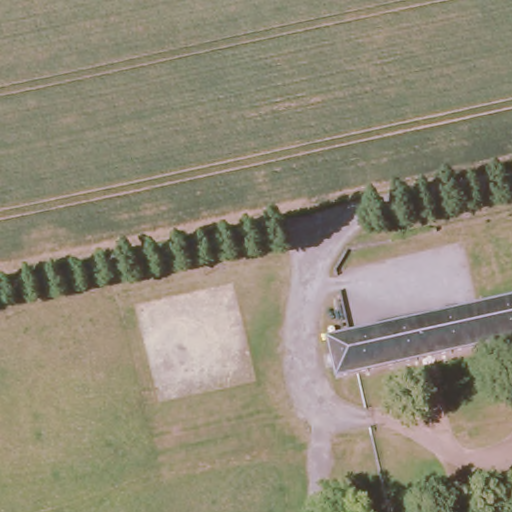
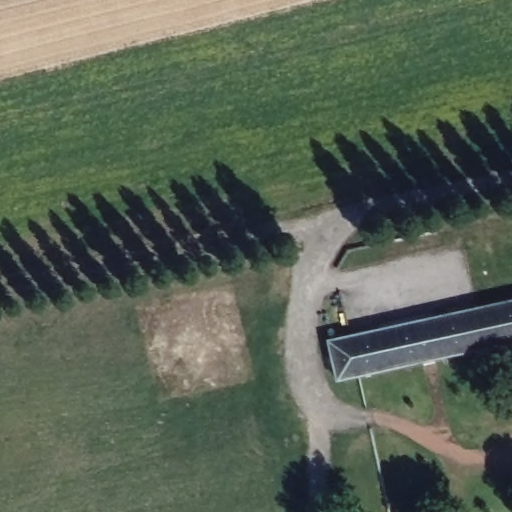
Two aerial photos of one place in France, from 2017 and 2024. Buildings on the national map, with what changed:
unchanged [(360,371),(338,375),(329,336),(350,332),(512,295),(512,336),(360,371)]

